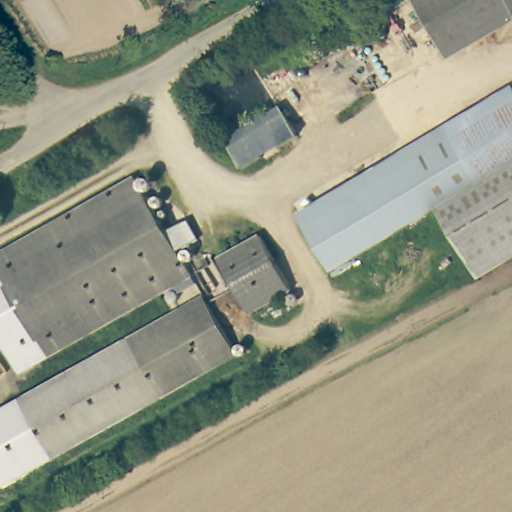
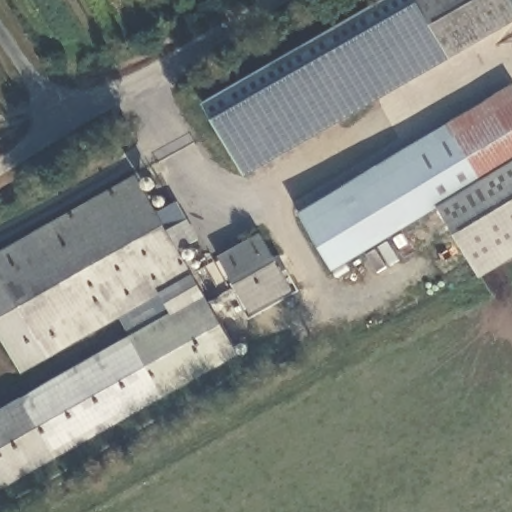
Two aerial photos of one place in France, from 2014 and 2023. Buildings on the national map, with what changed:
new [(244,175),(203,103),(383,0),(412,0),(445,59),(244,175)]
unchanged [(512,10),(512,22),(445,59),(412,0),(506,0),(512,10)]
unchanged [(507,0),(512,0),(512,9),(507,0)]
unchanged [(302,221),(300,217),(319,206),(324,202),(436,131),(512,83),(512,160),(470,186),(445,202),(335,272),(302,221)]
unchanged [(479,257),(445,202),(470,186),(512,160),(512,237),(479,257)]
unchanged [(48,356),(0,270),(0,256),(132,176),(190,274),(48,356)]
new [(479,257),(512,237),(512,260),(480,280),(436,208),(445,202),(479,257)]
unchanged [(226,278),(217,265),(263,235),(269,245),(294,283),(249,313),(226,278)]
new [(0,335),(0,270),(48,356),(20,372),(0,335)]
new [(207,300),(175,320),(159,292),(190,274),(207,300)]
unchanged [(208,301),(241,358),(61,463),(51,445),(27,405),(207,300),(208,301)]
unchanged [(0,481),(0,421),(27,405),(61,463),(7,494),(0,481)]

